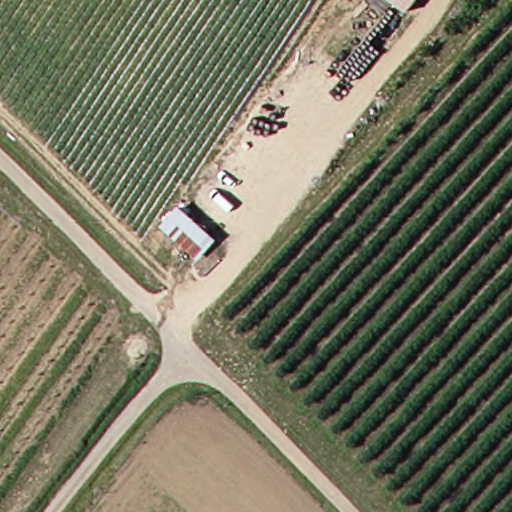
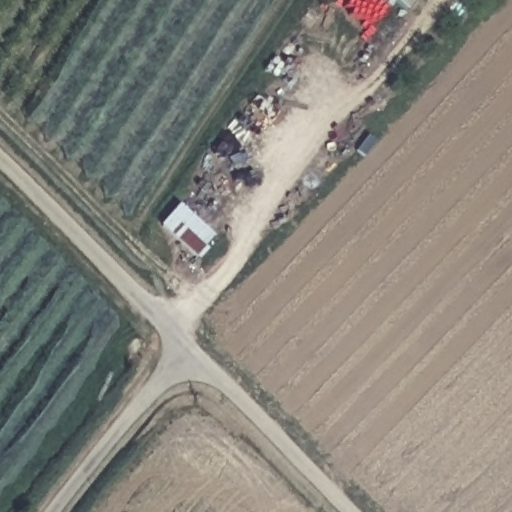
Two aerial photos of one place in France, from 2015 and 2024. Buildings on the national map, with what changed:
unchanged [(394,0),(419,0),(410,12),(394,0)]
unchanged [(180,212),(212,242),(197,258),(165,228),(180,212)]

